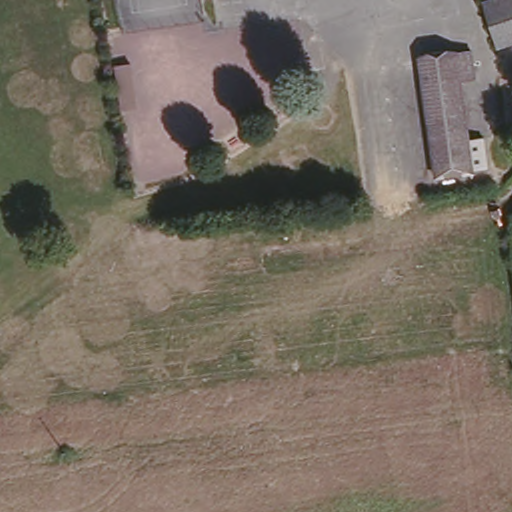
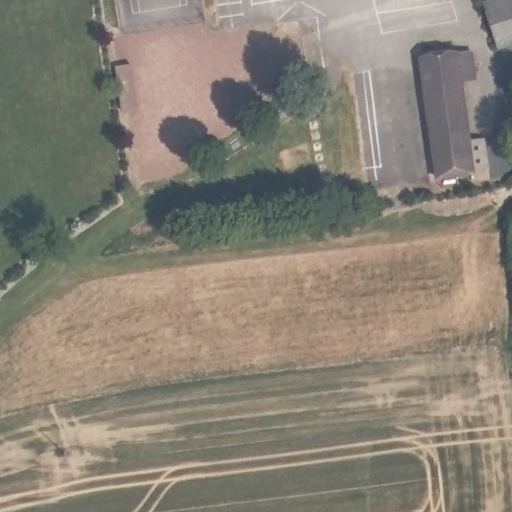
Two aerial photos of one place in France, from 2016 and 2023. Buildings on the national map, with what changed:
unchanged [(497,48),(484,8),(493,5),(506,0),(512,0),(512,43),(503,46),(497,48)]
unchanged [(492,0),(506,0),(493,5),(492,0)]
unchanged [(433,174),(421,55),(473,49),(475,76),(460,79),(465,137),(481,135),(485,165),(468,166),(469,171),(433,174)]
unchanged [(117,59),(124,103),(109,106),(102,61),(117,59)]

